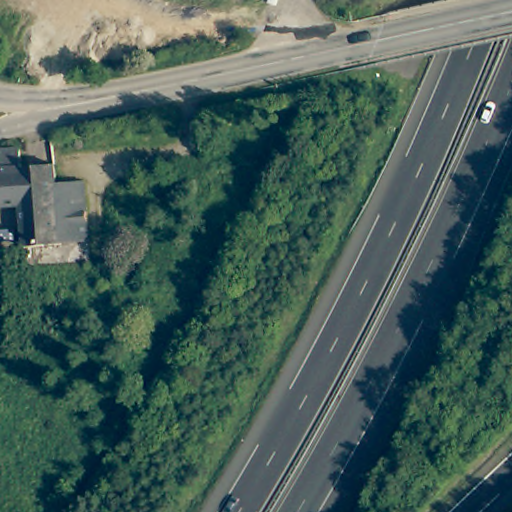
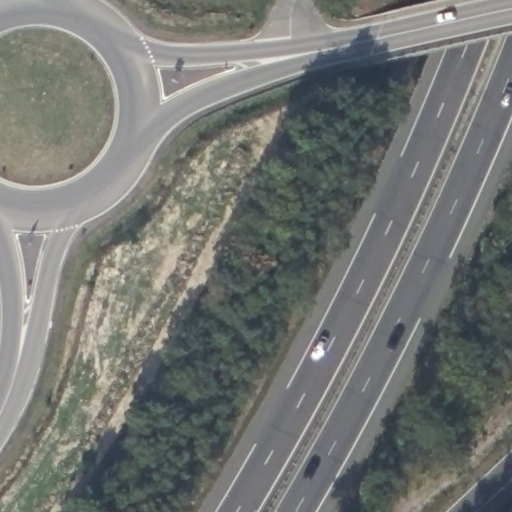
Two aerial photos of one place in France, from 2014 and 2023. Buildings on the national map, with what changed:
demolished [(13,203),(0,203),(0,150),(22,148),(24,165),(56,164),(56,181),(56,189),(52,189),(21,192),(18,197),(13,203)]
demolished [(83,179),(89,238),(60,239),(60,253),(21,258),(18,197),(21,192),(52,189),(56,189),(56,181),(83,179)]

